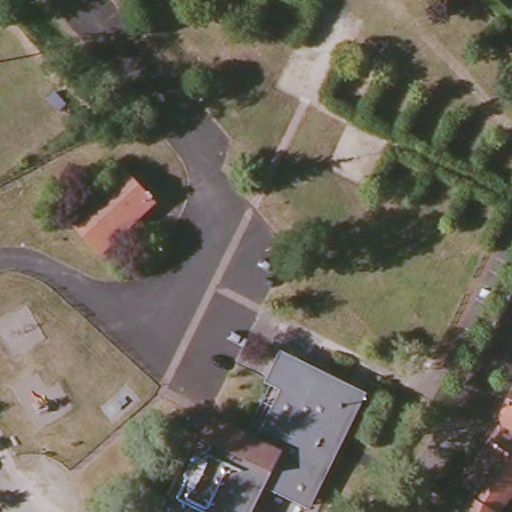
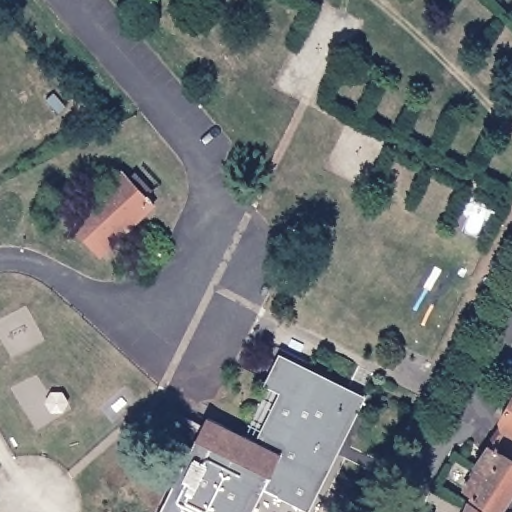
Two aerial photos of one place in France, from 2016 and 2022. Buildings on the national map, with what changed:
unchanged [(70,222),(121,173),(127,179),(137,170),(161,195),(100,254),(70,222)]
unchanged [(255,512),(166,512),(211,417),(263,443),(288,392),(272,384),(286,358),(301,366),(368,399),(312,510),(267,488),(255,512)]
unchanged [(512,398),(512,427),(498,420),(512,398)]
unchanged [(482,491),(471,485),(480,468),(475,466),(488,441),(512,454),(512,495),(505,510),(505,512),(473,512),(482,491)]
unchanged [(511,512),(505,512),(505,510),(511,512)]

